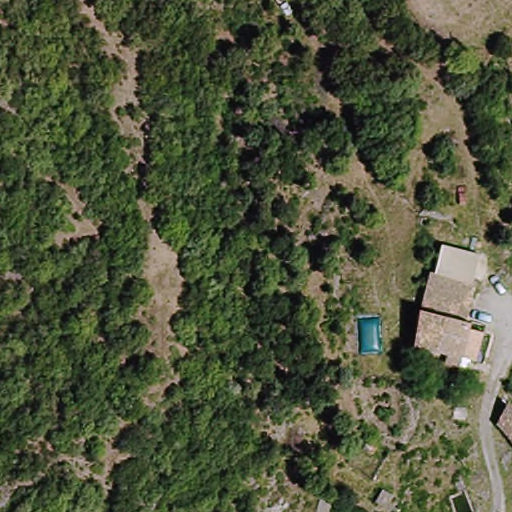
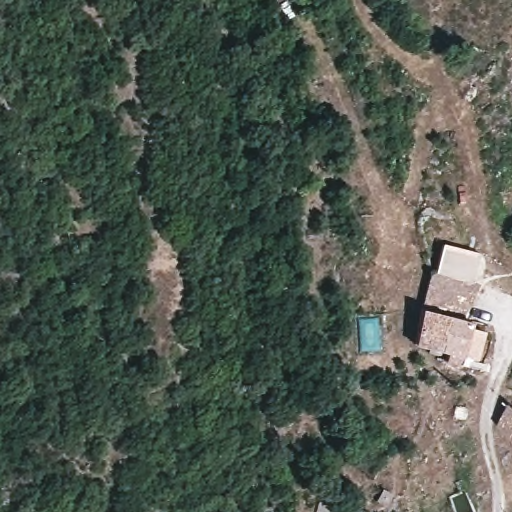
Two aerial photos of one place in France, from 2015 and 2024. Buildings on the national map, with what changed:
unchanged [(426,264),(427,260),(471,268),(478,271),(472,307),(487,311),(478,356),(459,351),(458,358),(435,352),(434,338),(410,335),(426,264)]
unchanged [(504,417),(512,404),(512,434),(504,417)]
unchanged [(313,512),(318,496),(336,504),(333,512),(313,512)]

